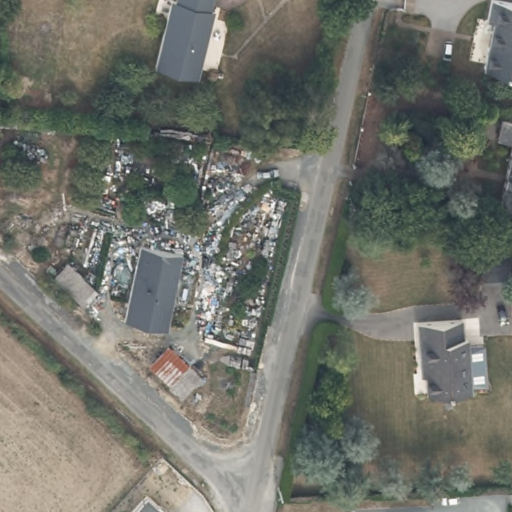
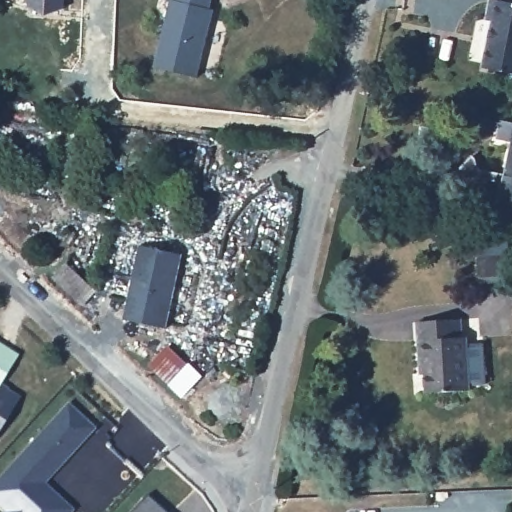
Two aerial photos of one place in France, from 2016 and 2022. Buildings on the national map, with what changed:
unchanged [(169,2),(175,2),(175,0),(210,0),(209,8),(213,9),(200,76),(158,69),(169,2)]
unchanged [(493,26),(484,22),(488,1),(512,6),(512,75),(485,70),(493,26)]
unchanged [(507,119),(512,121),(512,140),(501,136),(507,119)]
unchanged [(512,156),(512,202),(504,200),(512,156)]
unchanged [(142,244),(179,254),(160,331),(121,318),(142,244)]
unchanged [(78,312),(45,281),(65,258),(99,291),(78,312)]
unchanged [(421,346),(416,343),(417,323),(463,320),(466,393),(424,395),(421,346)]
new [(17,356),(0,387),(0,345),(17,356)]
unchanged [(201,374),(182,394),(153,367),(170,346),(201,374)]
new [(19,399),(0,431),(0,388),(19,399)]
new [(67,403),(95,430),(44,485),(73,511),(72,512),(1,512),(0,511),(0,476),(67,403)]
unchanged [(145,495),(161,512),(130,512),(145,495)]

